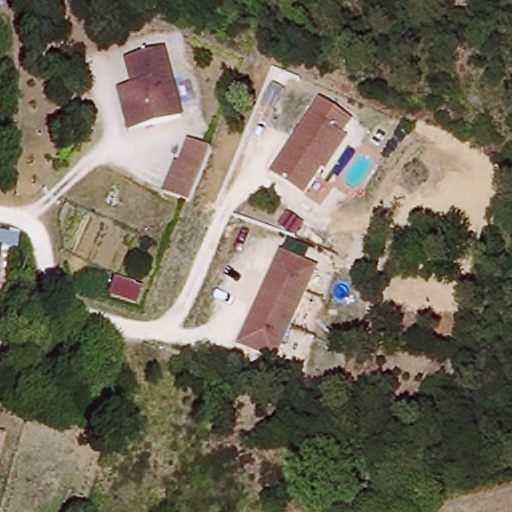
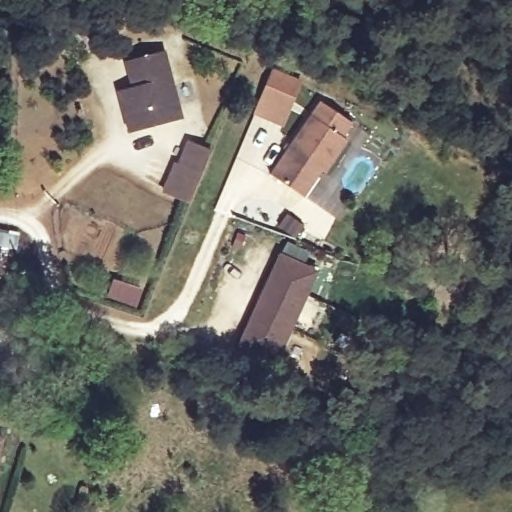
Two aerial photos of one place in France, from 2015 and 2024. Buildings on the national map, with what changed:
unchanged [(131,62),(168,52),(187,118),(149,129),(138,133),(127,93),(139,90),(131,62)]
new [(303,80),(284,127),(254,115),(273,68),(303,80)]
unchanged [(352,126),(341,140),(346,142),(324,174),(320,172),(301,200),(268,176),(318,102),(352,126)]
unchanged [(191,144),(212,152),(191,205),(166,194),(177,166),(181,167),(191,144)]
unchanged [(0,258),(0,232),(23,236),(19,252),(2,248),(0,258)]
unchanged [(304,299),(268,282),(281,252),(318,268),(304,299)]
unchanged [(277,360),(241,345),(268,282),(304,299),(277,360)]
unchanged [(3,441),(0,452),(0,439),(3,441)]

